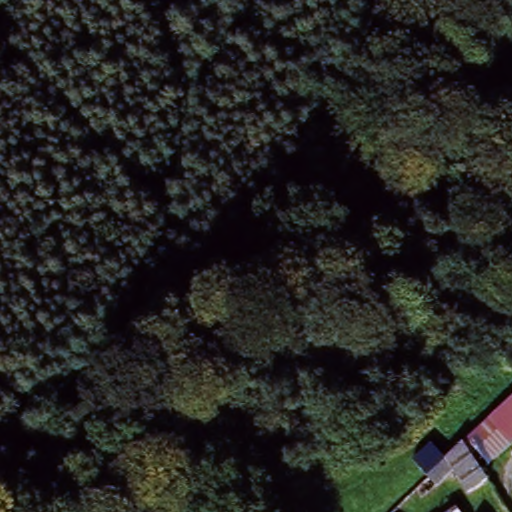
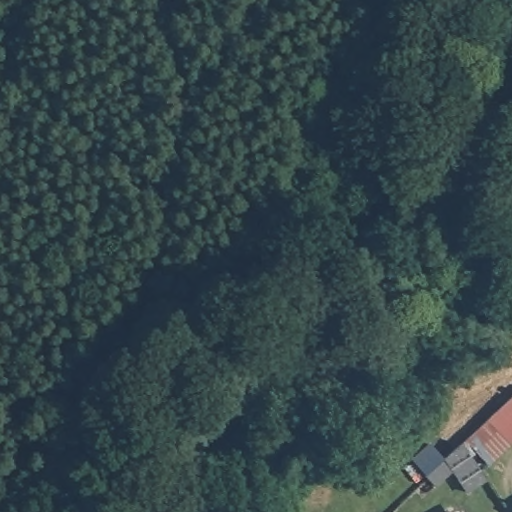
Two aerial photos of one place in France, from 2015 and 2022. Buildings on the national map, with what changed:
unchanged [(512,441),(477,471),(459,441),(512,394),(512,441)]
unchanged [(422,474),(431,467),(459,441),(477,471),(483,479),(464,491),(449,471),(439,479),(431,486),(422,474)]
unchanged [(459,509),(461,512),(455,512),(459,509)]

